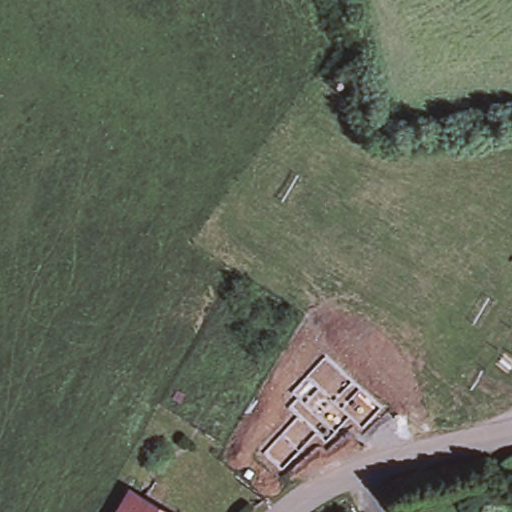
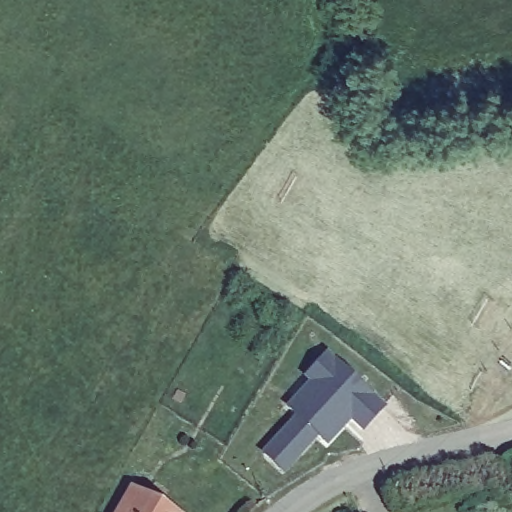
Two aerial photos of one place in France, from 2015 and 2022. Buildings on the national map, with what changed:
new [(326,352),(384,407),(361,433),(349,422),(326,448),(316,437),(284,476),(261,455),(294,417),(284,408),(306,384),(302,379),(326,352)]
demolished [(299,452),(268,430),(301,382),(331,405),(299,452)]
unchanged [(127,487),(173,512),(113,512),(127,487)]

